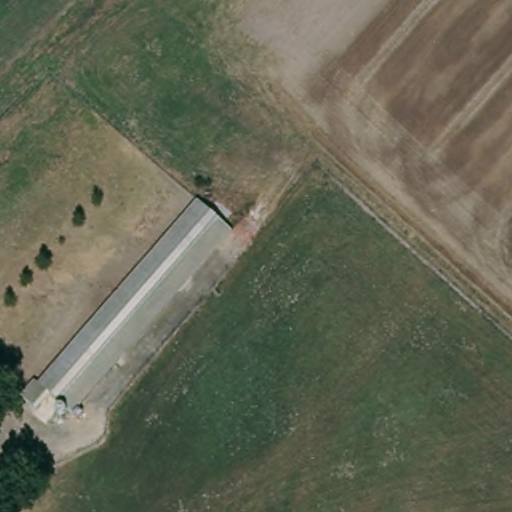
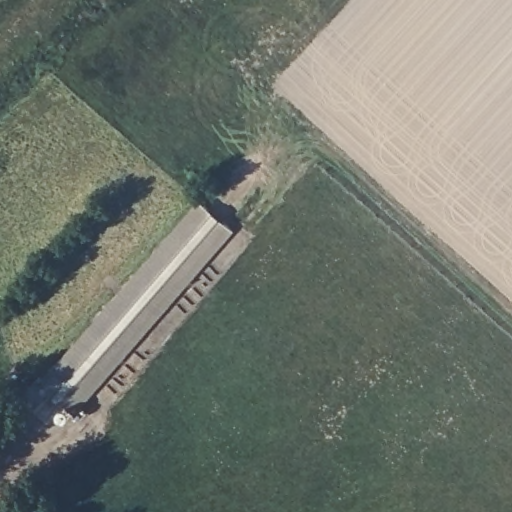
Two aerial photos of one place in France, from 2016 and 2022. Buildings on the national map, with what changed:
unchanged [(233,230),(71,412),(48,394),(35,408),(20,395),(34,379),(41,385),(202,201),(233,230)]

